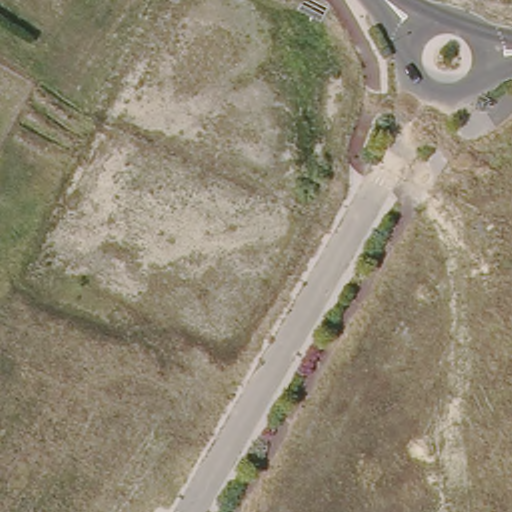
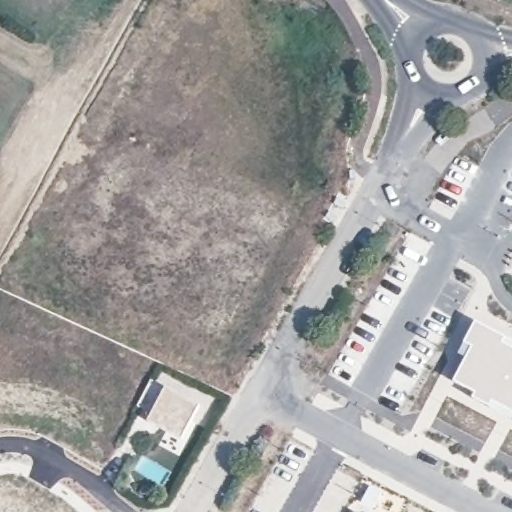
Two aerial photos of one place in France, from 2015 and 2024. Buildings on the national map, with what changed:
new [(475,392),(453,382),(471,346),(465,342),(476,322),(512,341),(512,419),(473,398),(475,392)]
new [(148,420),(152,413),(137,406),(150,380),(165,387),(199,406),(180,438),(148,420)]

